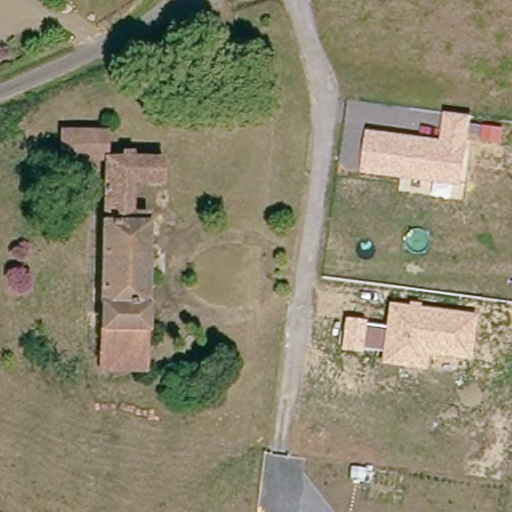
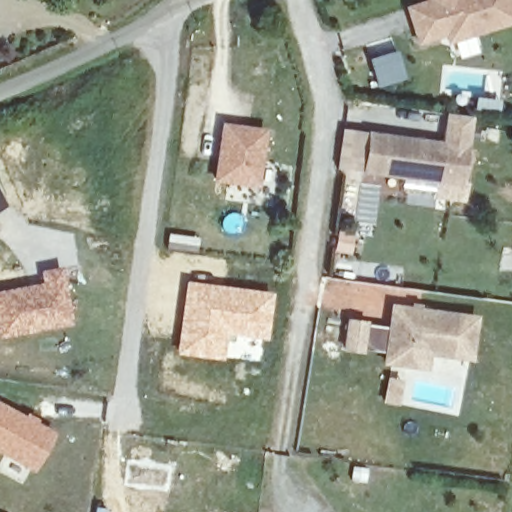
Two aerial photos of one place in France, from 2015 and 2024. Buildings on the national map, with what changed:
new [(512,5),(512,24),(446,45),(443,36),(415,45),(403,6),(422,0),(510,0),(512,5)]
new [(404,78),(377,87),(368,62),(396,53),(404,78)]
demolished [(101,159),(55,158),(59,112),(104,114),(101,159)]
unchanged [(470,117),(460,185),(362,173),(367,131),(441,141),(444,114),(470,117)]
new [(221,121),(262,127),(254,182),(213,176),(221,121)]
demolished [(243,185),(128,176),(126,219),(149,221),(142,366),(96,362),(106,194),(93,193),(94,179),(107,179),(107,156),(127,156),(128,144),(142,145),(142,153),(243,161),(243,185)]
new [(192,253),(177,251),(162,249),(165,235),(180,238),(194,239),(192,253)]
new [(44,283),(42,271),(58,267),(68,320),(0,334),(0,291),(44,283)]
new [(222,358),(175,353),(184,279),(273,291),(266,339),(262,361),(222,358)]
unchanged [(389,304),(408,306),(410,301),(423,303),(422,307),(477,315),(470,360),(430,355),(427,370),(382,365),(383,352),(363,349),(363,353),(341,352),(344,317),(367,320),(367,324),(387,328),(389,304)]
new [(53,429),(31,470),(0,453),(0,401),(53,429)]

